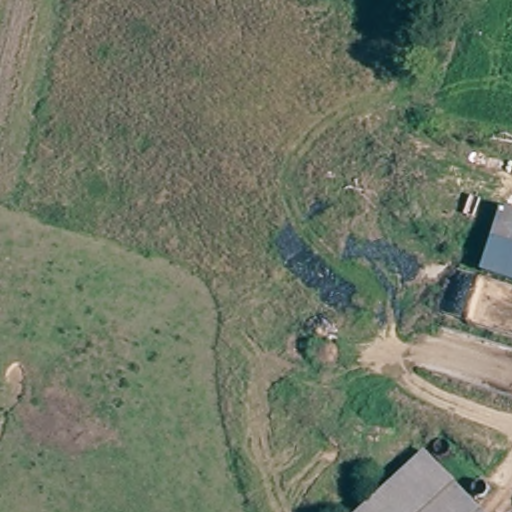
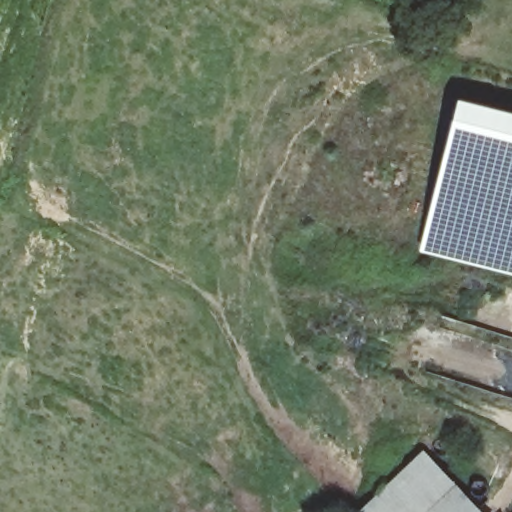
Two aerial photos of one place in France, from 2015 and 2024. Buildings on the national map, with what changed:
new [(458,99),(512,113),(512,273),(420,250),(458,99)]
unchanged [(489,512),(366,512),(431,451),(489,512)]

